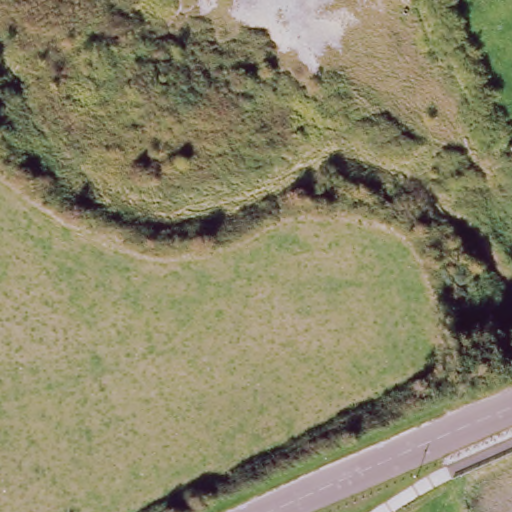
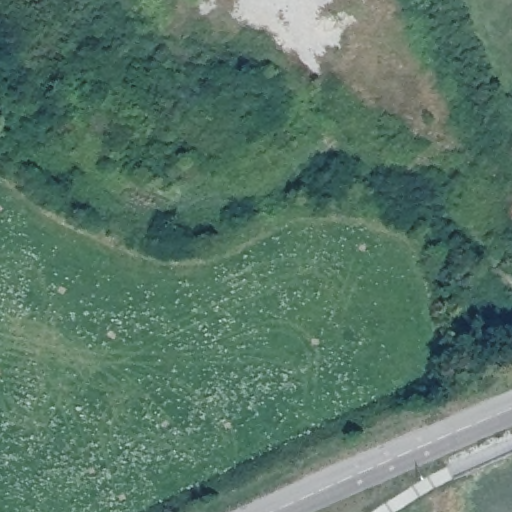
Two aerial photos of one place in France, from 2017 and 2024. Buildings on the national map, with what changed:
unchanged [(512,149),(512,157),(509,150),(512,149)]

